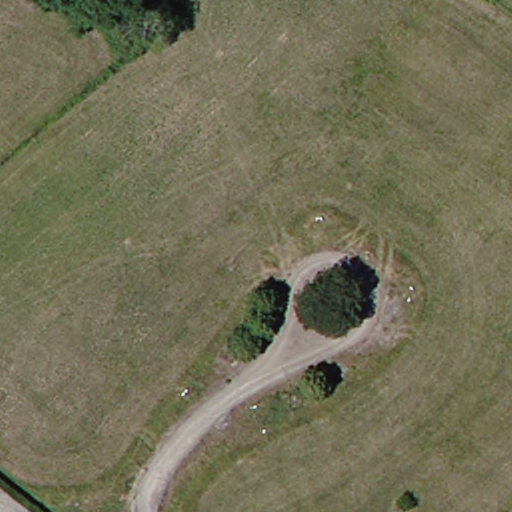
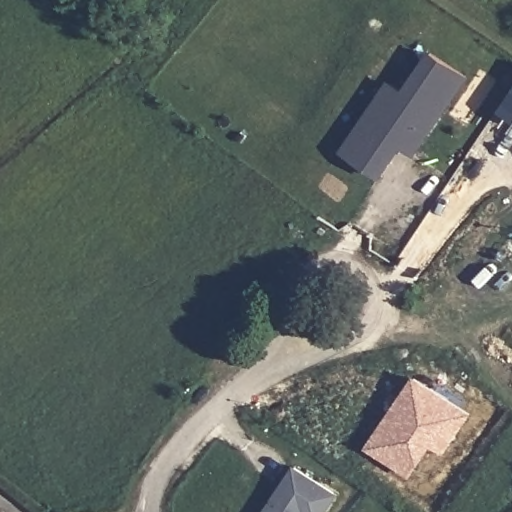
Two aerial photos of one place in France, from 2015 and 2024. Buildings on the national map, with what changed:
new [(375,176),(338,151),(372,103),(387,113),(427,53),(463,78),(437,116),(410,155),(400,149),(396,146),(386,160),(375,176)]
new [(512,91),(512,119),(500,110),(512,91)]
new [(415,376),(470,414),(443,455),(430,446),(408,478),(365,448),(415,376)]
new [(292,468),(333,496),(323,512),(263,512),(273,496),(279,488),(292,468)]

